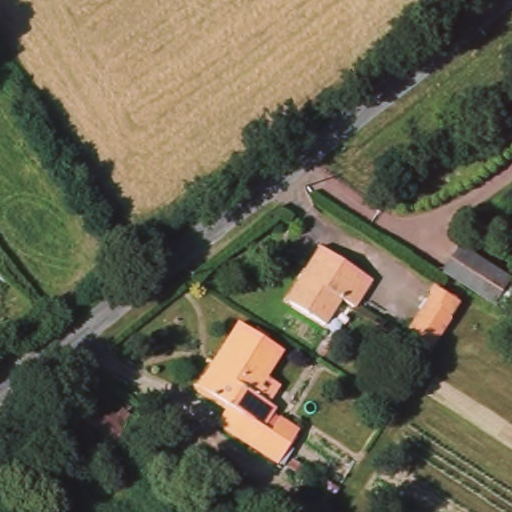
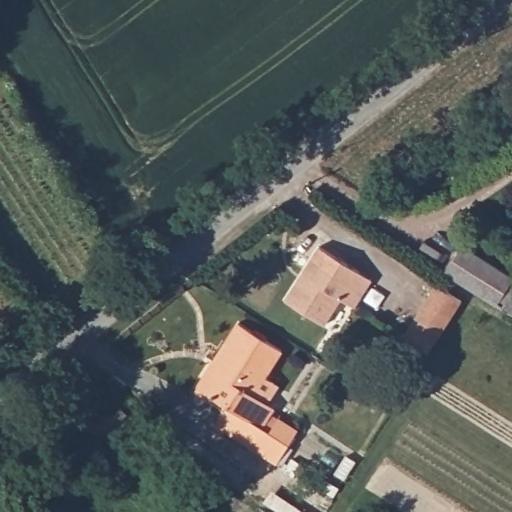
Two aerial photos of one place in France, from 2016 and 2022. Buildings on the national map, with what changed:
unchanged [(301,273),(321,245),(373,280),(356,307),(344,298),(326,325),(293,302),(285,297),(301,273)]
unchanged [(495,305),(441,272),(458,247),(510,280),(510,281),(512,283),(512,307),(508,313),(495,305)]
unchanged [(428,353),(401,336),(434,284),(461,302),(428,353)]
unchanged [(257,394),(276,406),(270,417),(273,419),(275,417),(300,432),(281,462),(218,424),(230,405),(200,387),(212,367),(219,372),(235,346),(229,342),(240,323),(283,350),(257,394)]
unchanged [(106,464),(70,435),(101,397),(137,427),(106,464)]
unchanged [(21,453),(7,437),(27,420),(41,437),(21,453)]
unchanged [(304,512),(281,512),(265,501),(273,490),(304,512)]

